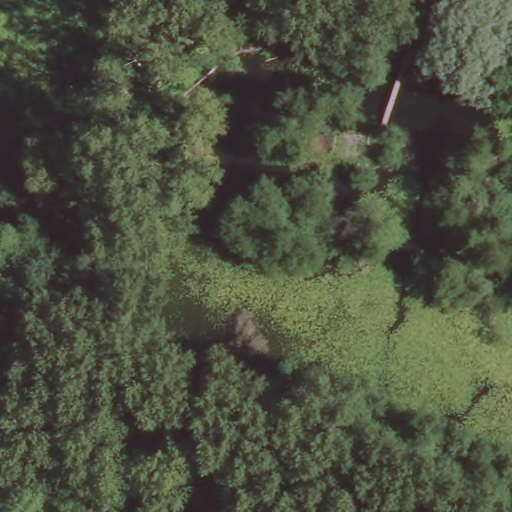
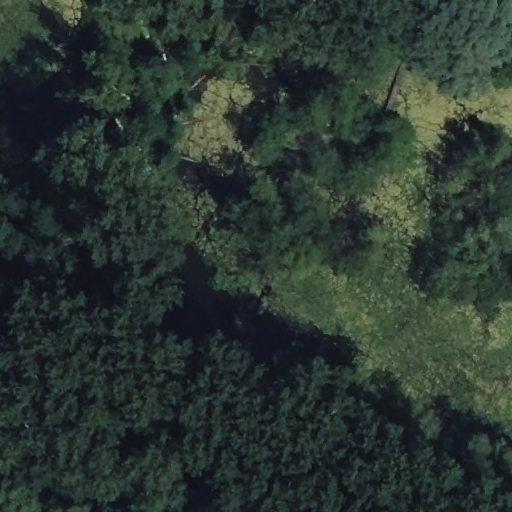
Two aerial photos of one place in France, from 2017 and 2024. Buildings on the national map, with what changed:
unchanged [(80,224),(98,216),(106,234),(88,241),(80,224)]

